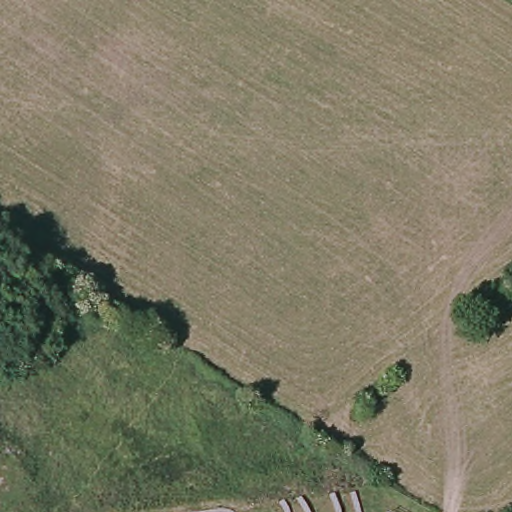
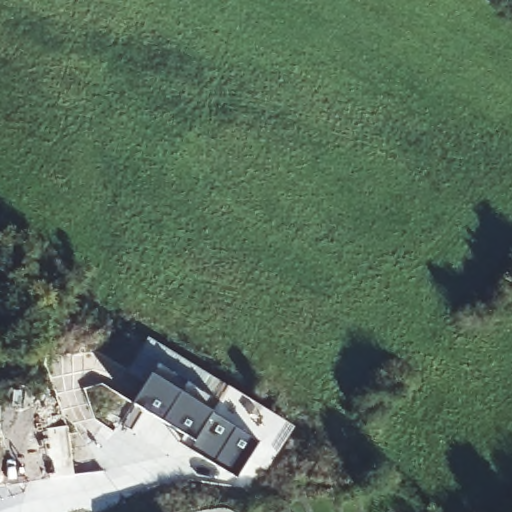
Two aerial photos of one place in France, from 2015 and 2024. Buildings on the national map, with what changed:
new [(130,403),(155,363),(217,401),(211,411),(257,440),(235,476),(187,448),(192,440),(130,403)]
new [(192,440),(187,448),(177,441),(182,433),(192,440)]

